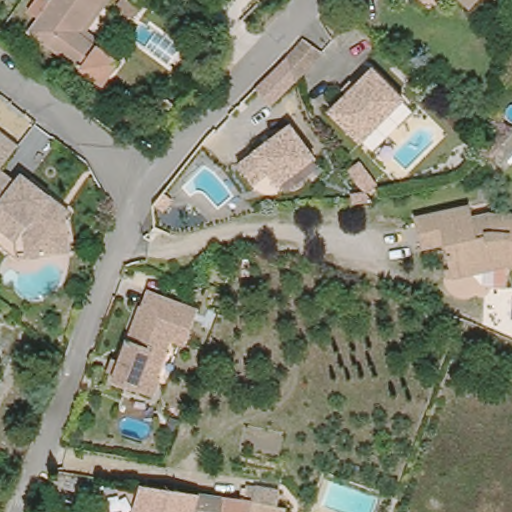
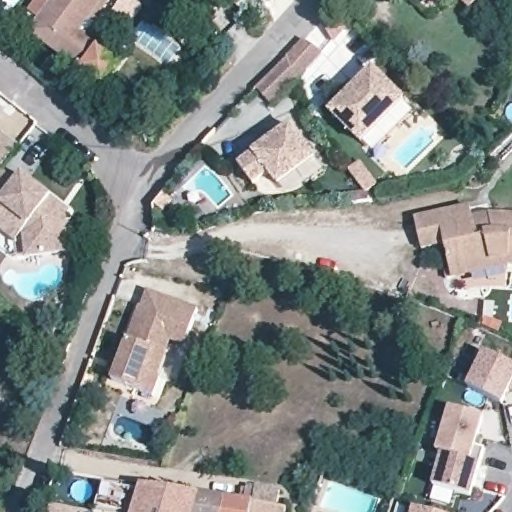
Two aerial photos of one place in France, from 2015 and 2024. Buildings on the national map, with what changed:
unchanged [(100,80),(27,27),(36,15),(24,7),(28,0),(103,0),(84,26),(98,36),(94,42),(115,58),(100,80)]
unchanged [(481,14),(465,0),(494,0),(481,14)]
unchanged [(297,80),(288,57),(304,39),(324,52),(297,80)]
unchanged [(367,142),(337,112),(379,69),(410,98),(367,142)]
unchanged [(297,122),(319,157),(283,181),(277,175),(260,184),(244,159),(297,122)]
unchanged [(3,167),(0,170),(0,130),(20,145),(3,167)]
unchanged [(15,180),(23,169),(69,205),(74,248),(16,256),(11,237),(0,226),(0,170),(3,167),(15,180)]
unchanged [(453,275),(451,267),(445,240),(422,245),(415,211),(470,199),(473,211),(490,207),(512,209),(512,262),(511,262),(453,275)]
unchanged [(131,337),(152,287),(200,307),(190,340),(180,342),(175,356),(163,392),(118,377),(131,337)]
new [(510,388),(504,403),(469,387),(485,352),(512,365),(512,389),(510,388)]
new [(484,417),(477,447),(486,450),(474,497),(434,487),(444,454),(436,452),(449,408),(484,417)]
unchanged [(130,508),(91,502),(100,473),(129,478),(139,480),(130,508)]
unchanged [(139,480),(194,489),(250,497),(282,502),(279,512),(129,512),(130,508),(139,480)]
new [(413,512),(414,509),(425,512),(413,512)]

